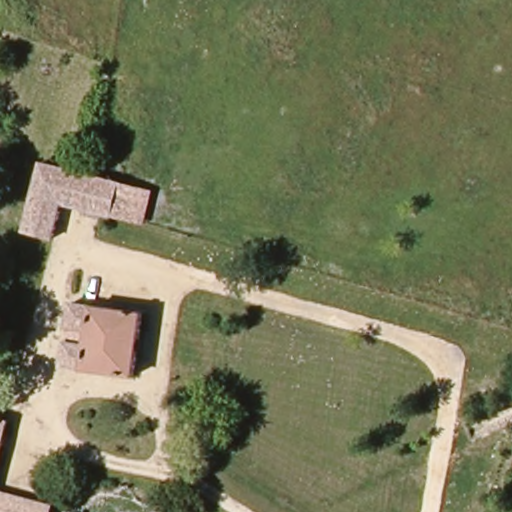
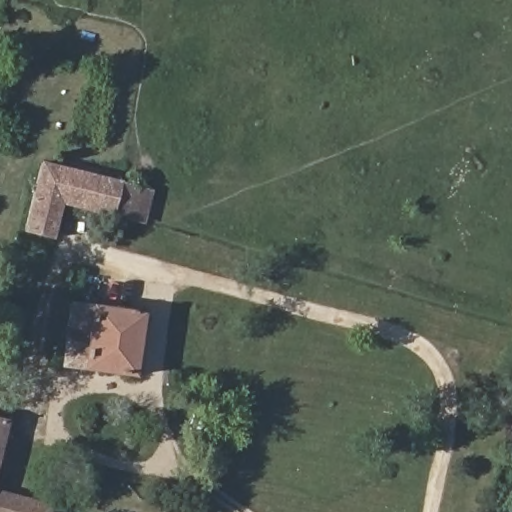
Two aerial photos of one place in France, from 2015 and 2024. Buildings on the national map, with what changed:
unchanged [(147,187),(141,220),(116,214),(107,212),(66,204),(59,238),(31,232),(46,166),(124,182),(147,187)]
unchanged [(134,377),(67,370),(70,346),(81,347),(83,333),(70,332),(73,307),(140,315),(134,377)]
unchanged [(0,455),(0,425),(7,426),(0,455)]
unchanged [(0,512),(0,494),(26,501),(57,510),(56,512),(0,512)]

